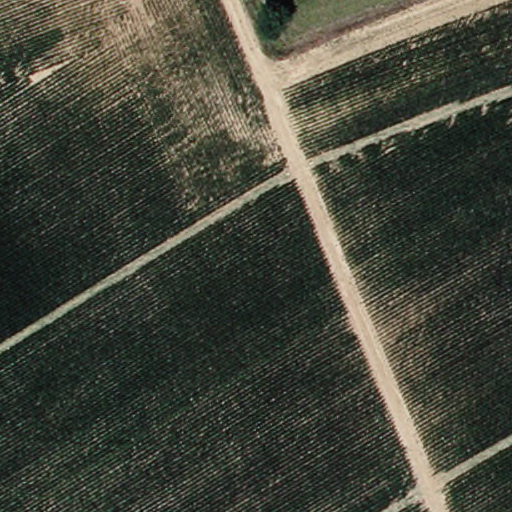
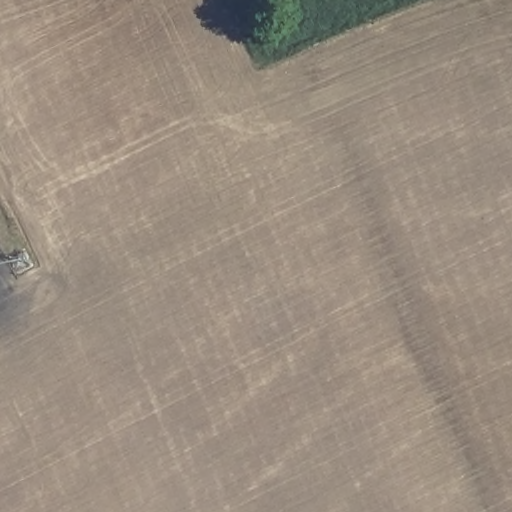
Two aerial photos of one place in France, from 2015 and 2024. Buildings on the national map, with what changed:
[]

